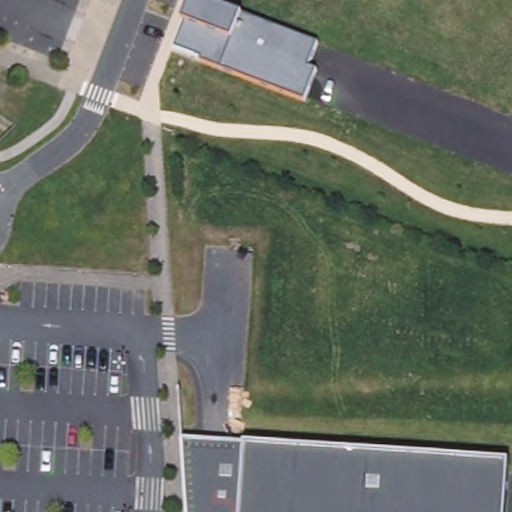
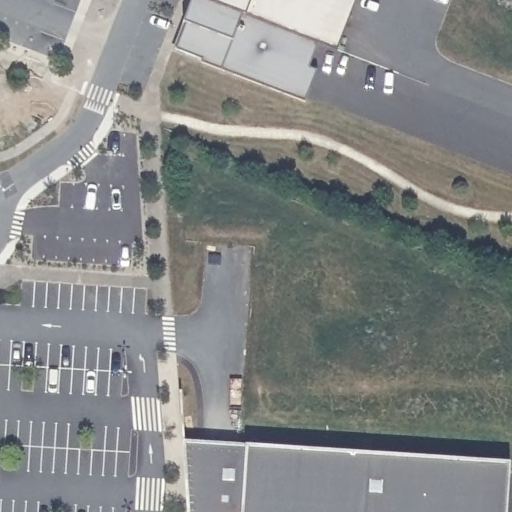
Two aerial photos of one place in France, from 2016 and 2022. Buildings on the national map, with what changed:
unchanged [(183,20),(193,0),(202,0),(241,15),(317,44),(308,68),(315,70),(304,100),(201,60),(203,56),(176,47),(186,22),(183,20)]
new [(337,47),(318,40),(317,44),(241,15),(201,0),(355,0),(337,47)]
unchanged [(506,512),(186,512),(181,440),(509,461),(506,512)]

